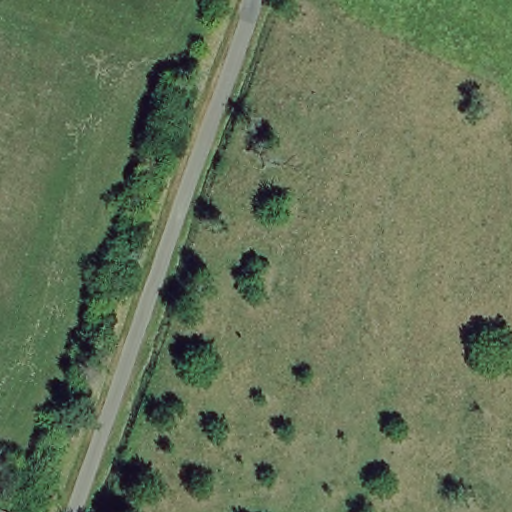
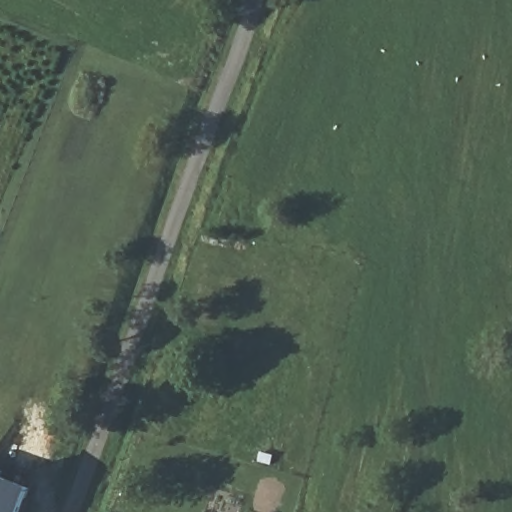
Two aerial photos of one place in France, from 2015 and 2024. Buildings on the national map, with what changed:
new [(20,482),(11,512),(0,512),(0,474),(20,482)]
demolished [(0,512),(0,511),(3,512),(0,512)]

